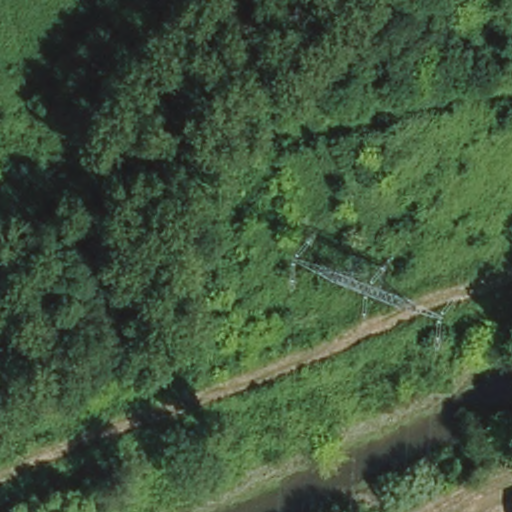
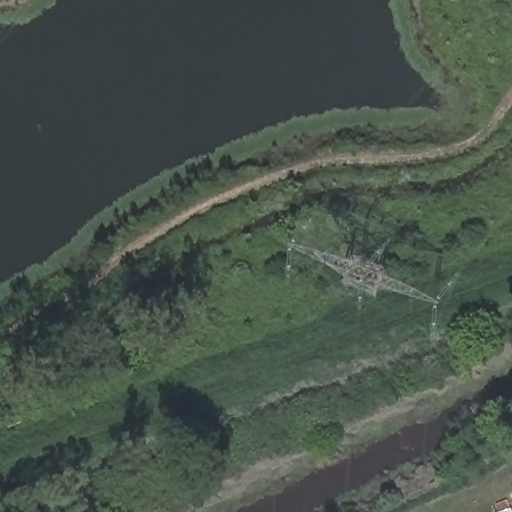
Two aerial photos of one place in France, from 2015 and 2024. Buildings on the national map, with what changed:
unchanged [(512,512),(492,512),(512,504),(512,512)]

